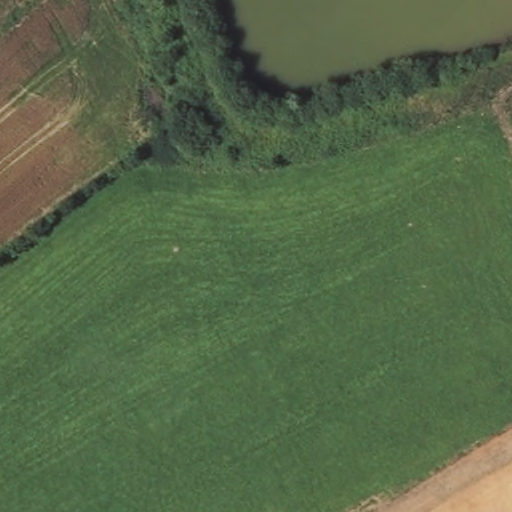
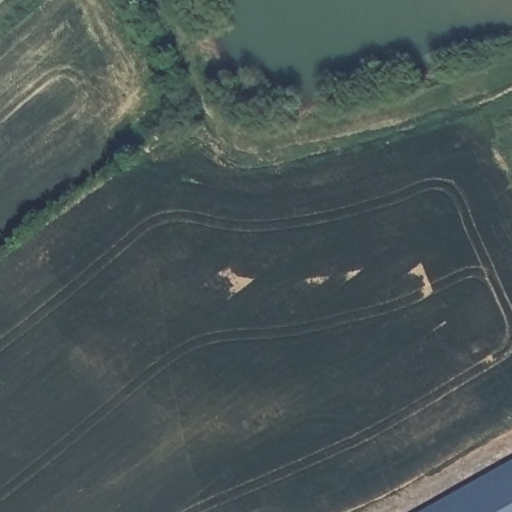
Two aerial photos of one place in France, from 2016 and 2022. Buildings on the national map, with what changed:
new [(419,512),(512,459),(512,512),(419,512)]

